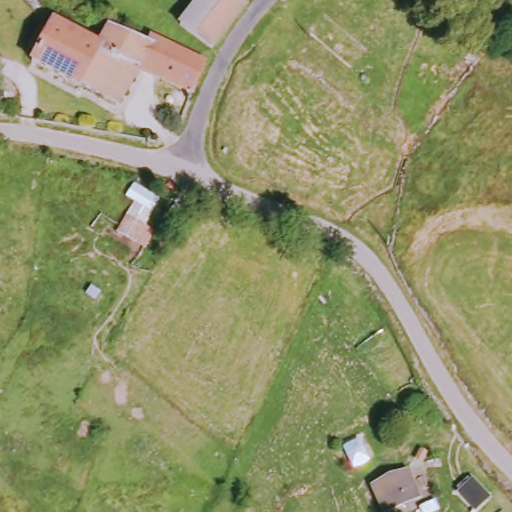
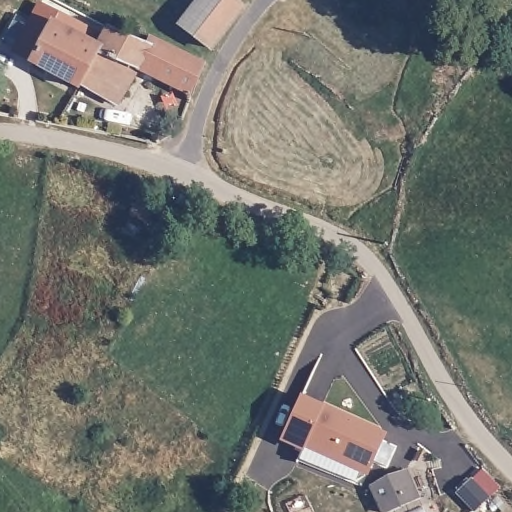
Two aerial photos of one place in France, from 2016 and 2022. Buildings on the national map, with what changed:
unchanged [(201,0),(232,0),(244,9),(210,54),(179,31),(201,0)]
unchanged [(192,93),(135,69),(113,112),(32,64),(51,26),(99,51),(112,29),(145,41),(150,36),(166,42),(204,62),(192,93)]
new [(306,447),(305,451),(281,441),(302,396),(325,405),(386,432),(368,476),(306,447)]
unchanged [(389,512),(388,512),(377,487),(406,473),(418,498),(389,512)]
unchanged [(479,511),(460,494),(472,481),(490,497),(479,511)]

